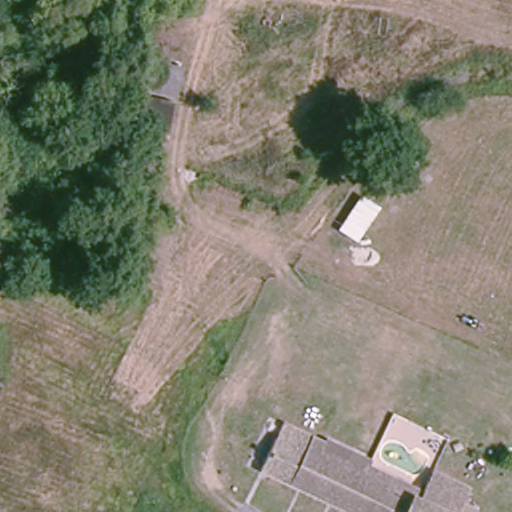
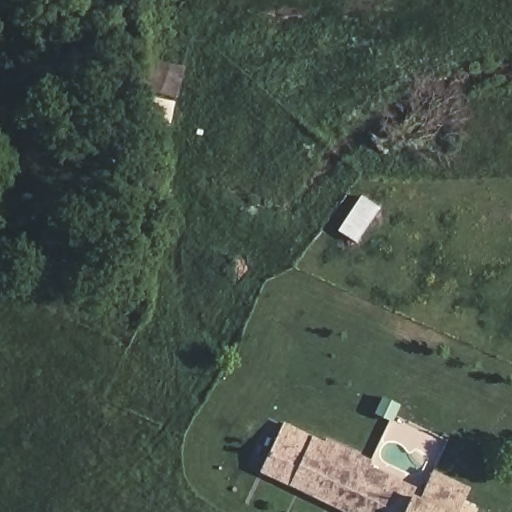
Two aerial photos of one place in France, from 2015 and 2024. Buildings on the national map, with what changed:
unchanged [(316,442),(313,450),(414,500),(422,485),(423,483),(461,502),(456,512),(348,512),(265,471),(287,427),(314,441),(316,442)]
unchanged [(483,512),(479,512),(480,510),(483,512)]

